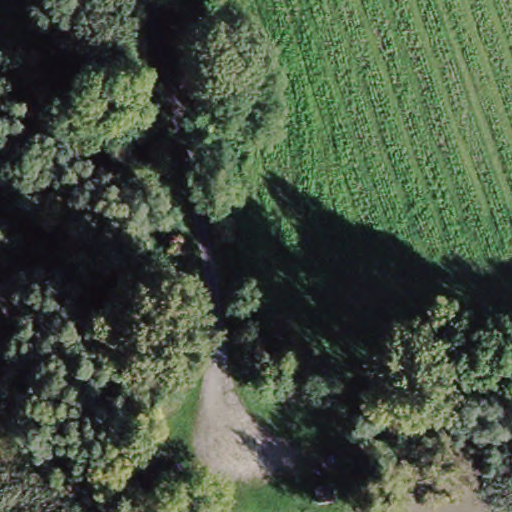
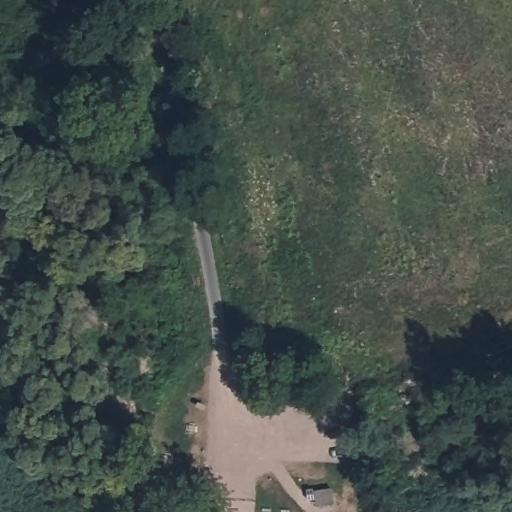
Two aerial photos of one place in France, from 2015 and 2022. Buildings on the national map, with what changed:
unchanged [(334,505),(314,506),(312,490),(331,490),(334,505)]

